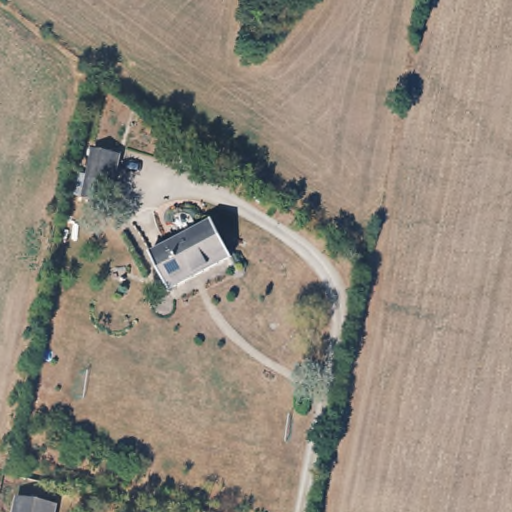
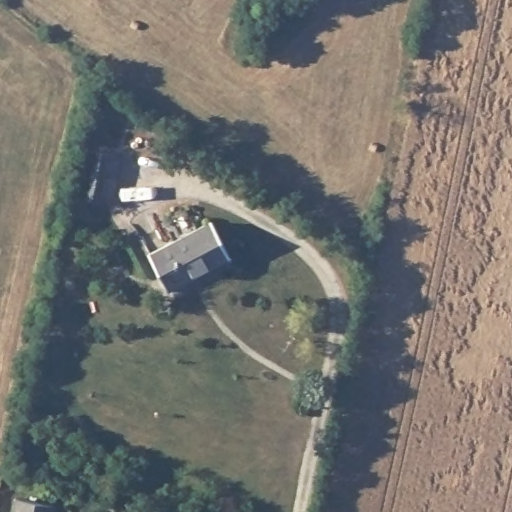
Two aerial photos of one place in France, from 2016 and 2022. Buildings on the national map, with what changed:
unchanged [(115,154),(103,204),(79,199),(90,149),(115,154)]
unchanged [(208,220),(227,256),(164,288),(145,252),(208,220)]
unchanged [(51,510),(51,512),(13,512),(15,503),(51,510)]

